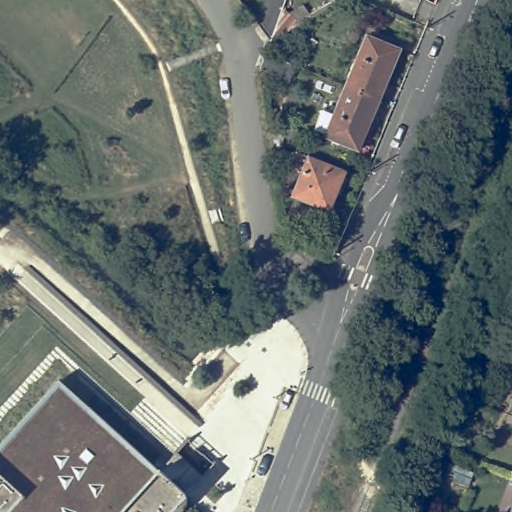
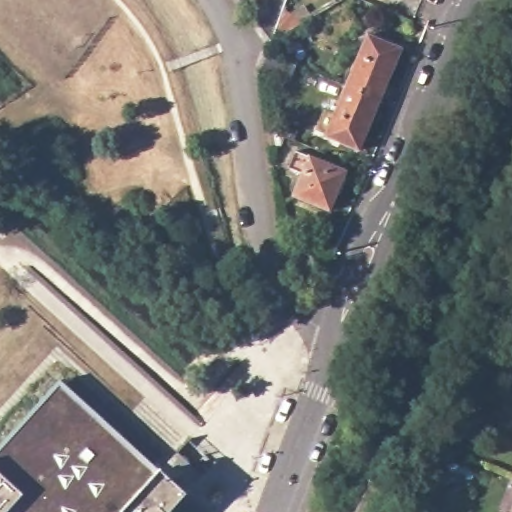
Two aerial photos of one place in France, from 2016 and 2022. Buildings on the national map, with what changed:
unchanged [(280,9),(299,24),(269,41),(280,9)]
unchanged [(370,35),(404,49),(383,99),(350,86),(370,35)]
unchanged [(292,64),(286,78),(260,68),(259,68),(265,54),(292,64)]
unchanged [(342,83),(349,85),(346,93),(339,89),(342,83)]
unchanged [(363,150),(329,136),(330,134),(319,130),(327,110),(338,114),(346,93),(350,86),(383,99),(363,150)]
unchanged [(283,136),(279,147),(270,148),(268,130),(283,136)]
unchanged [(349,172),(333,210),(297,195),(306,174),(292,168),(298,151),(349,172)]
unchanged [(506,292),(512,294),(512,309),(501,305),(506,292)]
unchanged [(58,381),(158,472),(176,453),(202,477),(185,496),(170,512),(0,512),(0,444),(58,381)]
unchanged [(447,413),(454,396),(464,399),(457,416),(447,413)]
unchanged [(444,475),(449,463),(473,472),(468,484),(444,475)]

